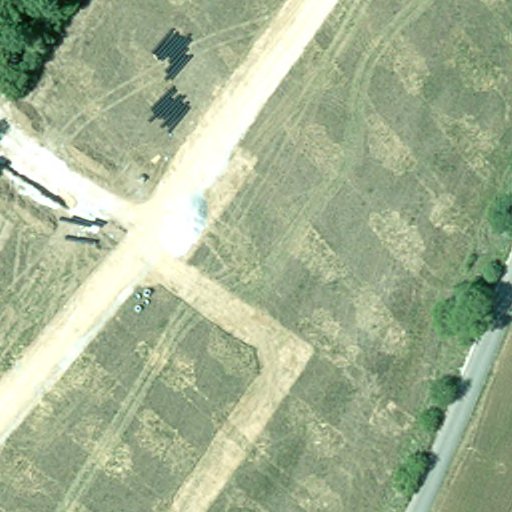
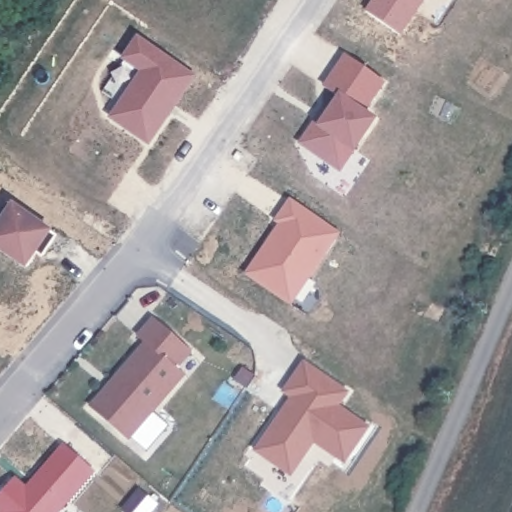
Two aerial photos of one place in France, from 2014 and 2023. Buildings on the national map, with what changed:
new [(365,10),(372,0),(425,0),(402,35),(365,10)]
new [(378,119),(354,153),(340,173),(297,144),(316,116),(320,120),(337,97),(322,86),(344,54),(385,81),(366,111),(378,119)]
new [(237,150),(244,155),(239,160),(234,157),(237,150)]
new [(341,234),(291,307),(245,276),(277,226),(274,223),(290,198),(341,234)]
new [(38,252),(26,269),(0,253),(0,221),(12,203),(53,231),(57,236),(43,257),(38,252)]
unchanged [(152,318),(192,353),(180,369),(187,374),(155,413),(170,426),(147,452),(132,438),(130,441),(89,406),(144,342),(137,336),(152,318)]
new [(340,406),(372,427),(344,465),(314,445),(291,478),(252,452),(289,399),(282,394),(304,361),(350,392),(340,406)]
new [(95,472),(61,512),(0,512),(0,495),(15,477),(27,488),(64,445),(95,472)]

